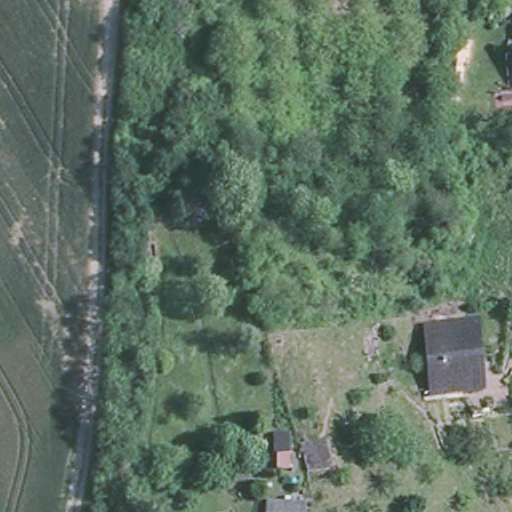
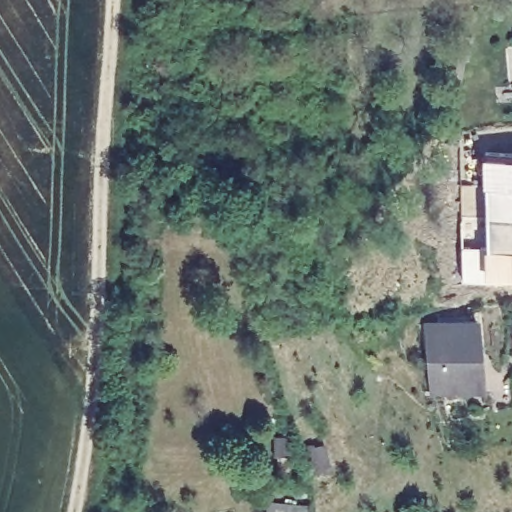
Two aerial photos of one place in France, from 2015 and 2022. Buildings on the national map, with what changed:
unchanged [(130,138),(147,140),(143,162),(142,166),(127,164),(128,163),(130,138)]
new [(488,159),(512,160),(512,288),(487,287),(488,159)]
unchanged [(425,322),(477,317),(487,392),(433,397),(425,322)]
unchanged [(299,512),(275,512),(277,499),(300,502),(299,512)]

